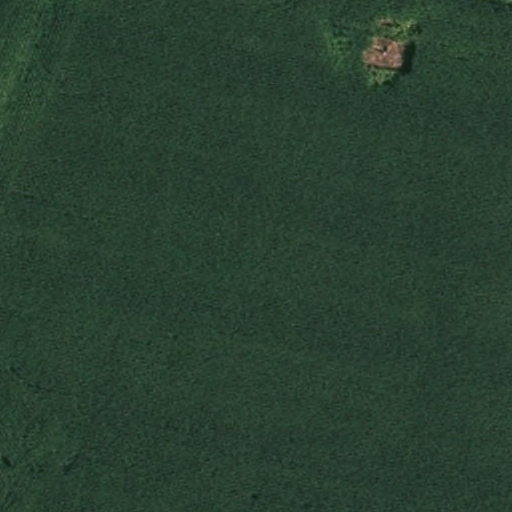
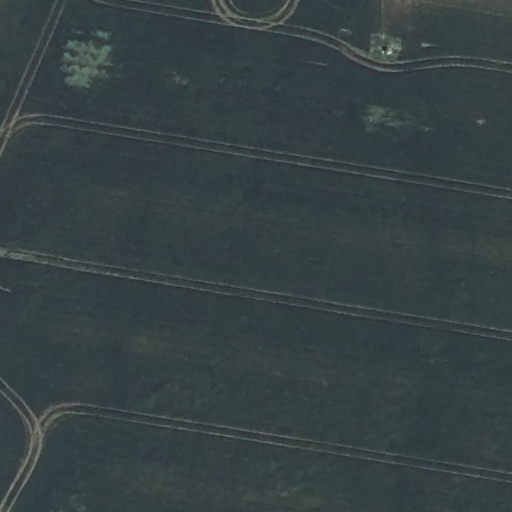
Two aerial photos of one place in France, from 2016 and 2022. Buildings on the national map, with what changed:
[]

